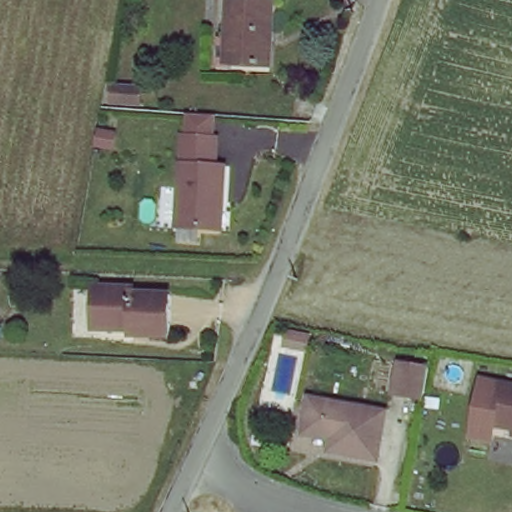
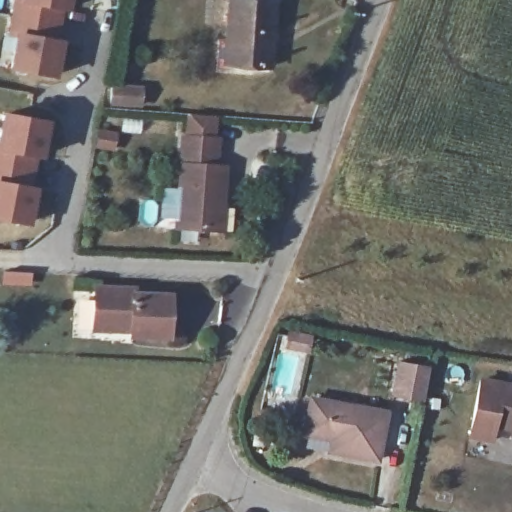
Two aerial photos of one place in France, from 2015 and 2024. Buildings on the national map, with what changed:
new [(19,0),(70,0),(69,6),(64,5),(58,39),(63,40),(58,74),(15,66),(21,34),(13,33),(19,0)]
unchanged [(237,44),(230,43),(231,0),(274,1),(275,65),(236,64),(237,44)]
unchanged [(117,88),(145,90),(143,107),(115,107),(117,88)]
new [(45,157),(40,156),(34,190),(39,191),(34,225),(0,219),(0,149),(3,150),(8,116),(50,124),(45,157)]
unchanged [(184,120),(219,122),(217,150),(228,150),(222,215),(177,210),(184,120)]
unchanged [(97,316),(98,288),(141,288),(141,295),(174,295),(172,340),(137,338),(136,332),(108,332),(96,332),(97,316)]
unchanged [(311,341),(332,343),(333,352),(311,351),(311,341)]
unchanged [(427,402),(398,398),(403,368),(432,373),(427,402)]
unchanged [(501,380),(512,382),(512,430),(494,427),(501,380)]
unchanged [(308,429),(314,394),(390,407),(384,452),(335,445),(336,435),(308,429)]

